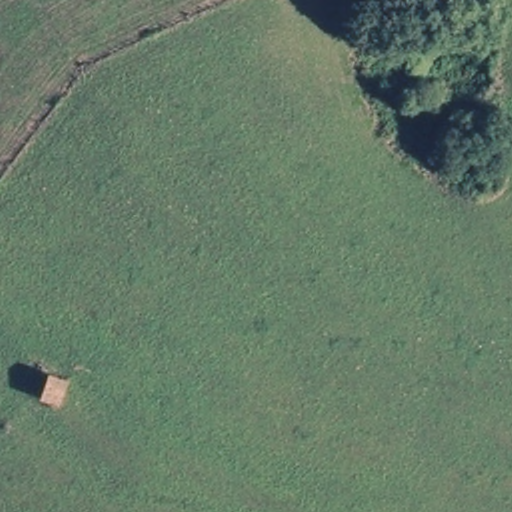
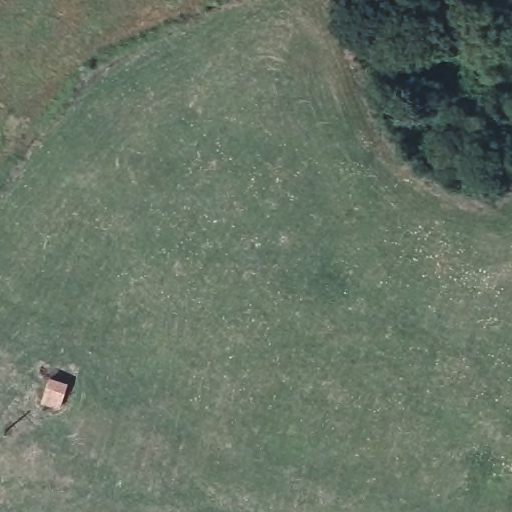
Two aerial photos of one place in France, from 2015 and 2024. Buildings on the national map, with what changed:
unchanged [(49,407),(31,400),(40,372),(59,380),(49,407)]

